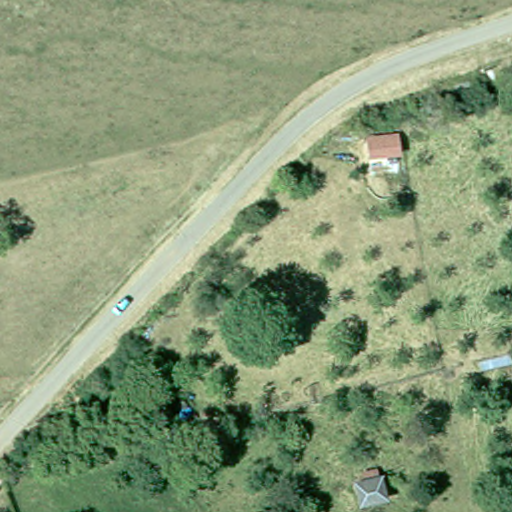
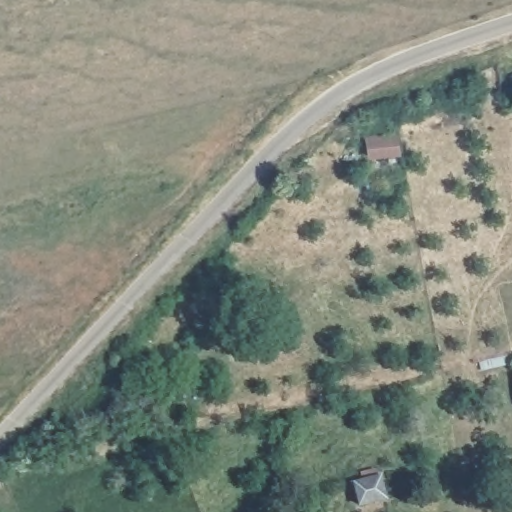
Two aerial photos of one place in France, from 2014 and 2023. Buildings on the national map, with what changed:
unchanged [(388,470),(395,491),(361,503),(354,482),(388,470)]

